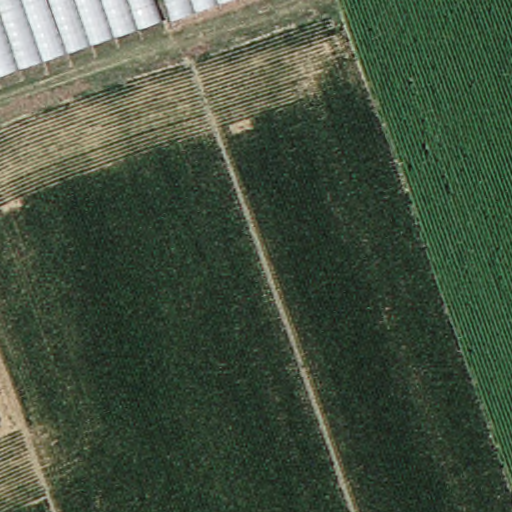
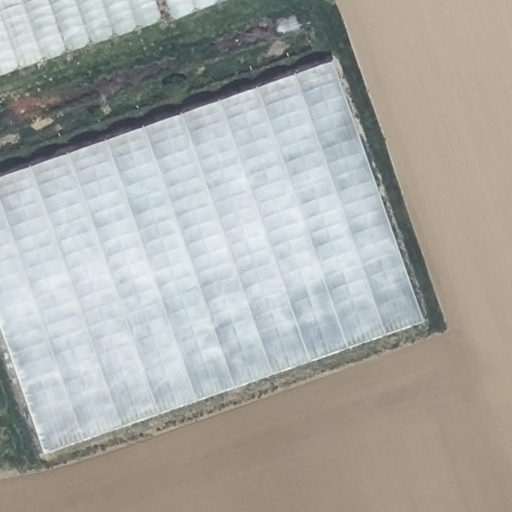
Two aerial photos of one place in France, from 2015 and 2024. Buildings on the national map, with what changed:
unchanged [(0,66),(0,0),(154,0),(159,15),(0,66)]
unchanged [(171,0),(249,0),(179,24),(171,0)]
new [(0,323),(0,179),(332,63),(424,322),(45,455),(0,323)]

